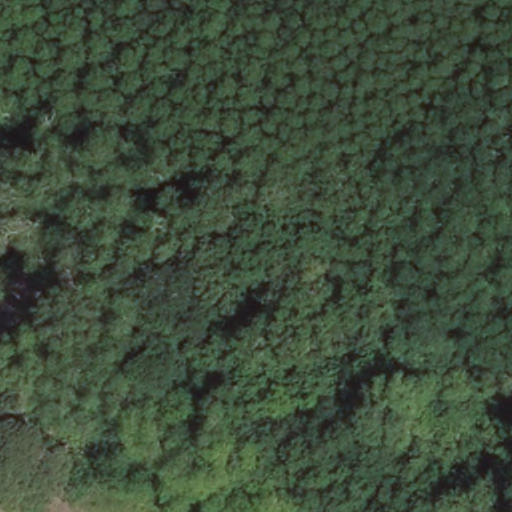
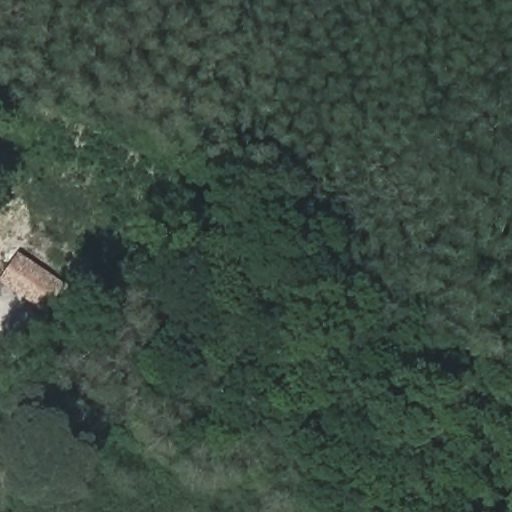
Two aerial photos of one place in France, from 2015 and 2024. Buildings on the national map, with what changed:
new [(0,279),(18,253),(64,283),(46,312),(0,279)]

